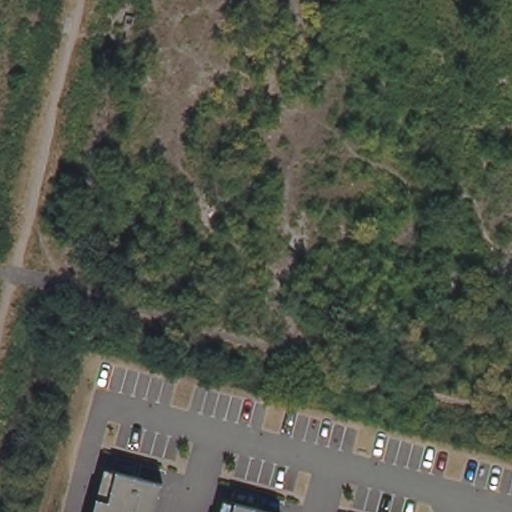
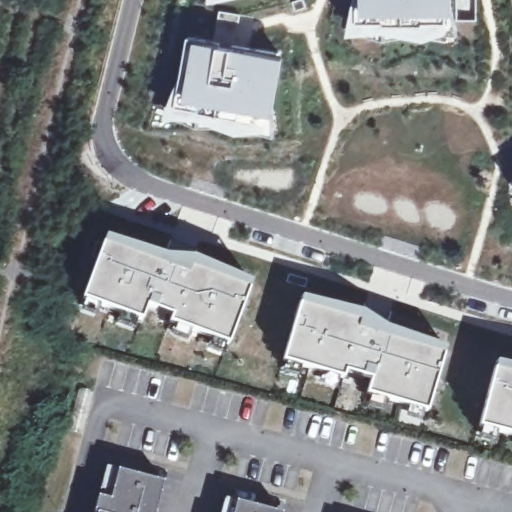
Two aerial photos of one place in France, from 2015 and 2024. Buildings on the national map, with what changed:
new [(445,13),(449,31),(430,39),(348,34),(358,0),(455,0),(455,13),(445,13)]
new [(278,51),(277,56),(267,111),(266,121),(269,134),(165,116),(180,77),(190,37),(278,51)]
new [(169,257),(194,258),(254,284),(230,346),(170,324),(172,316),(147,306),(140,321),(84,300),(106,237),(169,257)]
new [(364,312),(385,327),(447,347),(427,412),(365,394),(370,380),(344,371),(340,379),(282,361),(300,298),(364,312)]
new [(512,435),(480,426),(496,363),(512,366),(512,435)]
unchanged [(106,468),(165,483),(158,512),(94,512),(106,468)]
unchanged [(225,498),(282,512),(221,512),(225,498)]

